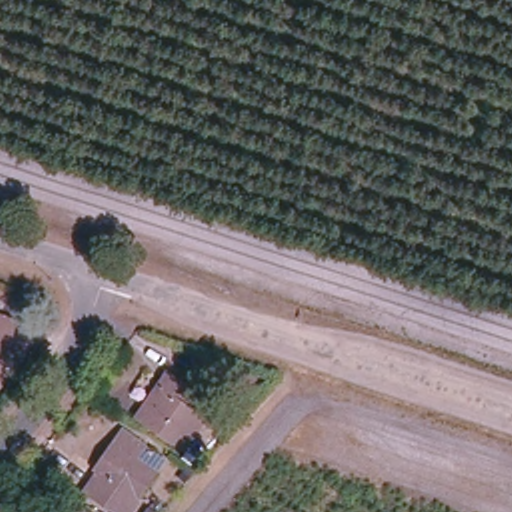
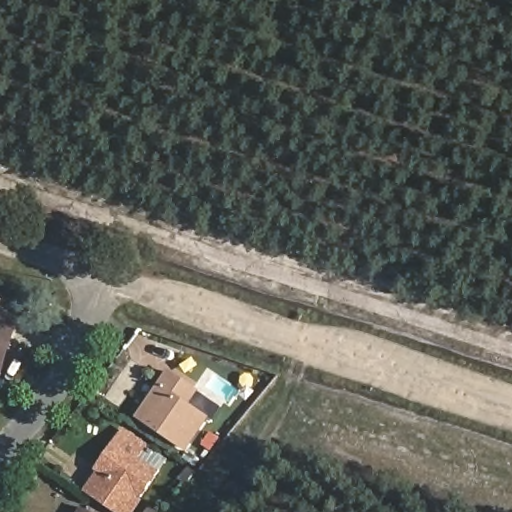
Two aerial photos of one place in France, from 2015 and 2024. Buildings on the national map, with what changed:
unchanged [(1,349),(0,351),(0,315),(18,321),(12,340),(5,337),(1,349)]
unchanged [(154,398),(163,384),(157,380),(167,366),(197,386),(187,400),(207,413),(205,416),(185,447),(141,417),(154,398)]
unchanged [(99,472),(102,474),(121,447),(115,442),(125,428),(147,444),(137,457),(157,472),(139,498),(141,500),(132,512),(113,512),(85,492),(99,472)]
unchanged [(82,508),(89,512),(80,512),(82,508)]

